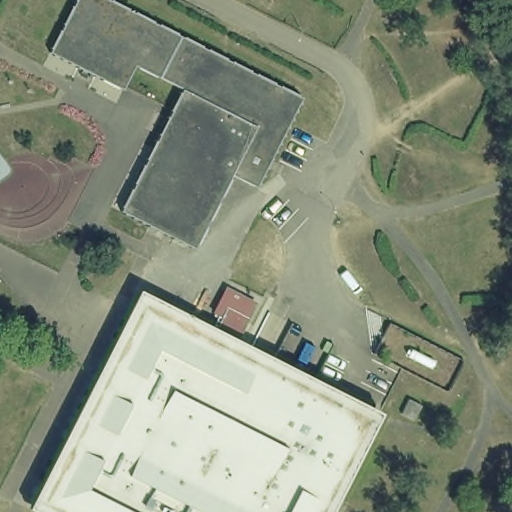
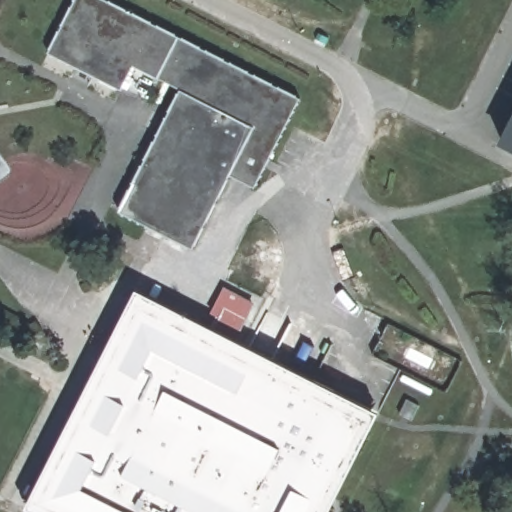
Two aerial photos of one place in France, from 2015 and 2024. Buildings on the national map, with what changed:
unchanged [(120,207),(183,88),(135,64),(122,86),(51,51),(75,0),(114,0),(301,95),(257,183),(230,173),(194,244),(120,207)]
new [(499,143),(512,118),(512,149),(499,143)]
unchanged [(44,512),(27,503),(138,289),(205,323),(223,285),(255,301),(234,339),(377,410),(326,512),(44,512)]

